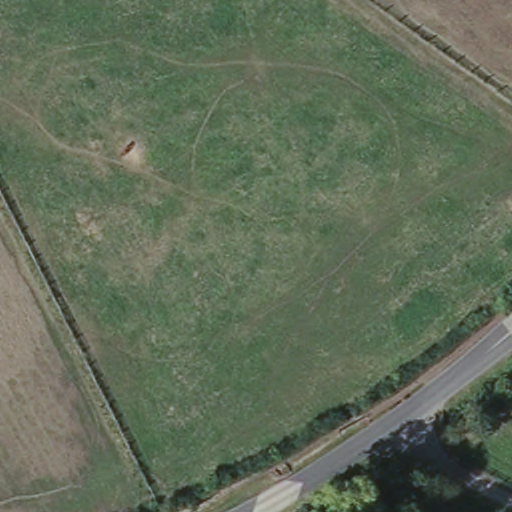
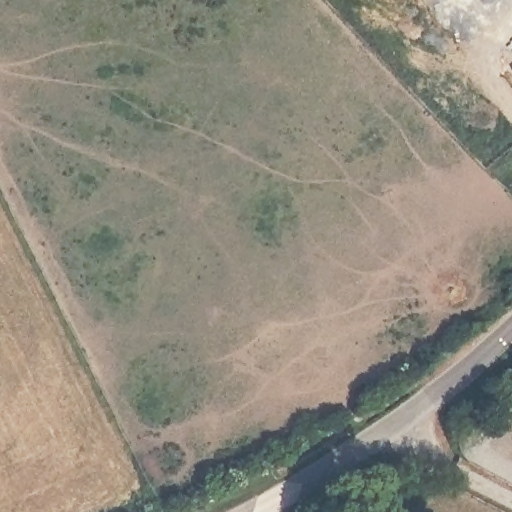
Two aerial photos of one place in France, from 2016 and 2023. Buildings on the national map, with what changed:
[]

